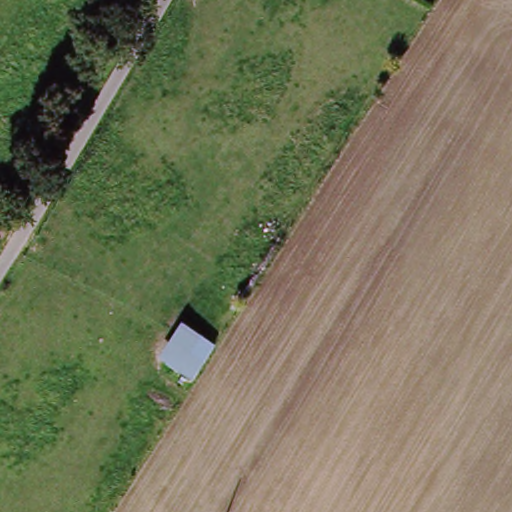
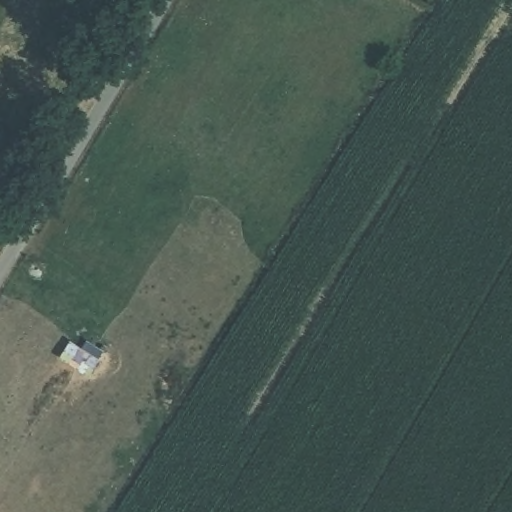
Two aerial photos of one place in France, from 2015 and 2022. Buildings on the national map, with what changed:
new [(217,346),(193,385),(156,358),(180,322),(217,346)]

